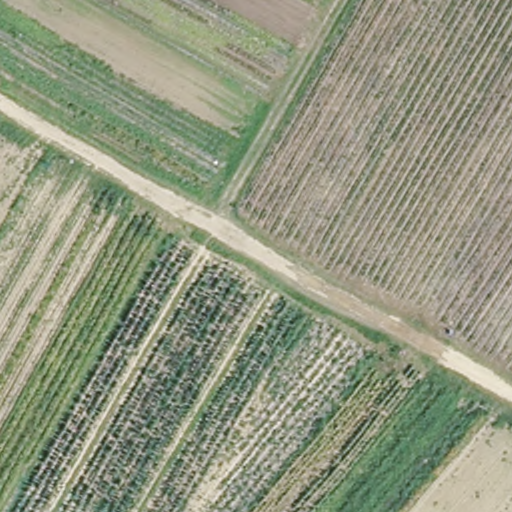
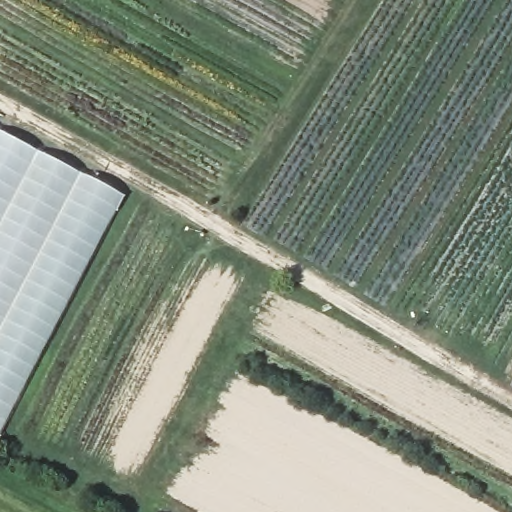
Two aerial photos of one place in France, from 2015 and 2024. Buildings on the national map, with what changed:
new [(126,199),(1,436),(0,436),(0,131),(126,199)]

